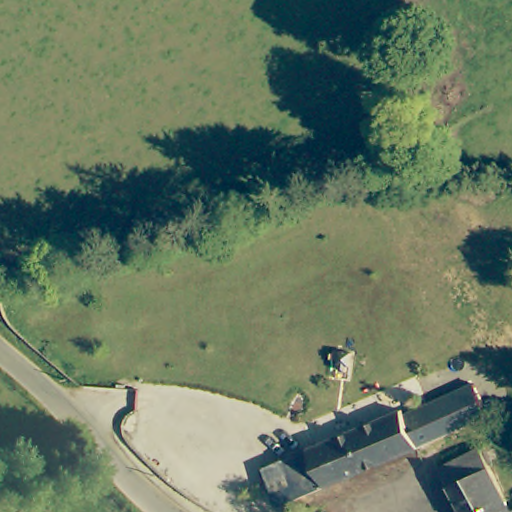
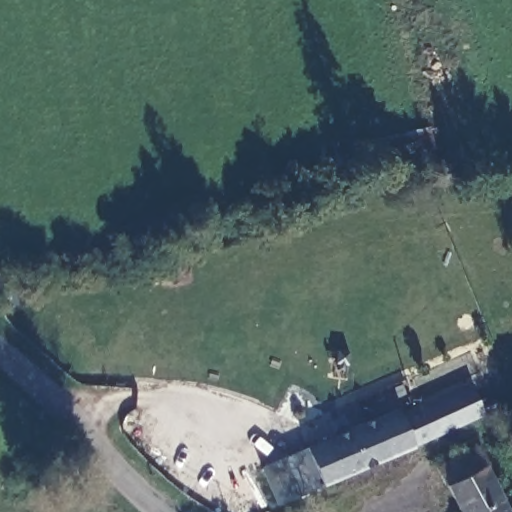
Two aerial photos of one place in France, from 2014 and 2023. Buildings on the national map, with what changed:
unchanged [(363,156),(356,137),(399,121),(405,140),(363,156)]
unchanged [(400,416),(471,385),(485,419),(413,450),(400,416)]
unchanged [(413,450),(274,500),(258,463),(398,409),(413,450)]
unchanged [(497,453),(503,451),(512,469),(512,480),(494,489),(474,448),(490,440),(497,453)]
unchanged [(474,448),(494,489),(505,512),(457,512),(436,467),(474,448)]
unchanged [(512,512),(505,512),(512,508),(512,512)]

